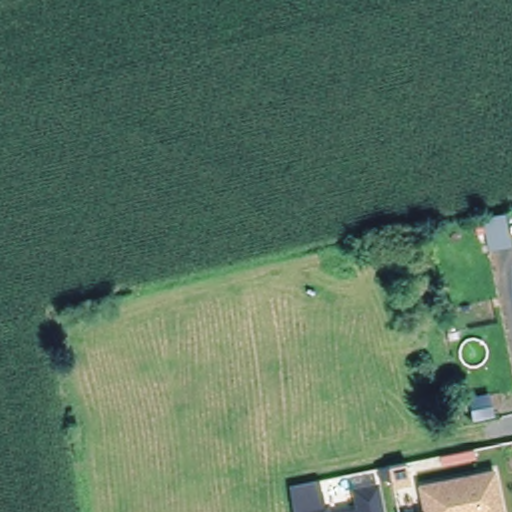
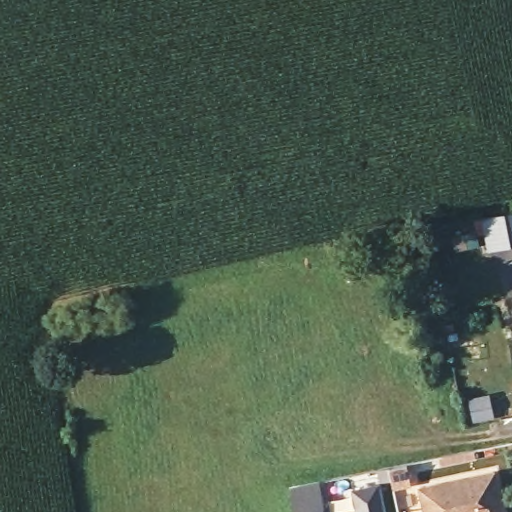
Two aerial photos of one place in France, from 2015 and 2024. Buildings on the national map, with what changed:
unchanged [(502,210),(508,242),(488,246),(482,215),(502,210)]
unchanged [(467,400),(486,396),(488,413),(470,416),(467,400)]
unchanged [(406,463),(410,484),(392,487),(387,467),(406,463)]
unchanged [(492,470),(501,512),(423,512),(417,486),(492,470)]
unchanged [(353,487),(376,483),(381,512),(339,512),(357,509),(353,487)]
unchanged [(325,501),(327,512),(293,512),(292,507),(325,501)]

